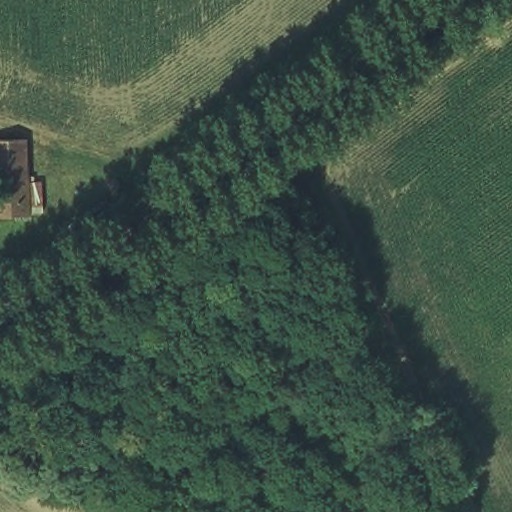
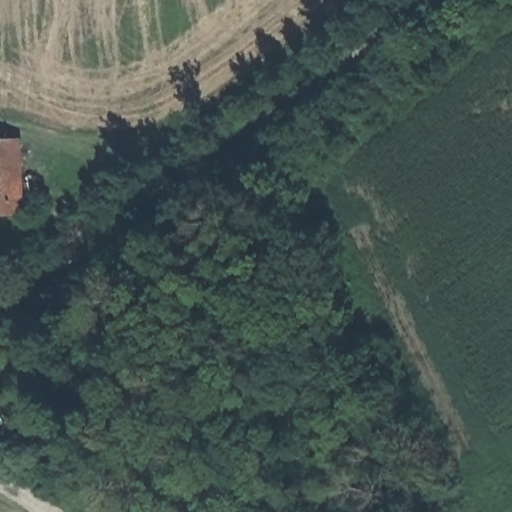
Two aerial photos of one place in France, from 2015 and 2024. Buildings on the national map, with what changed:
unchanged [(25,133),(30,208),(0,211),(0,136),(25,133)]

